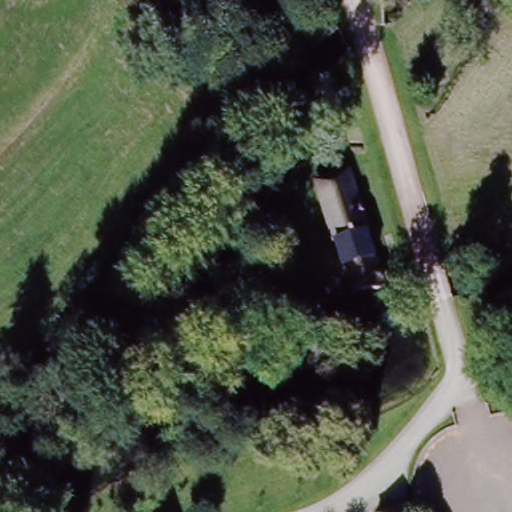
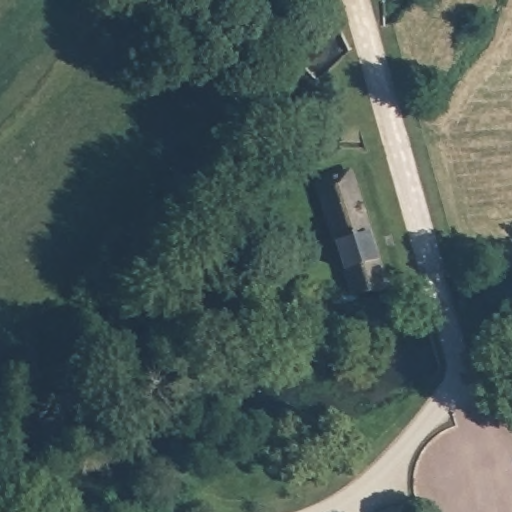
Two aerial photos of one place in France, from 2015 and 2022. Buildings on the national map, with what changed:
unchanged [(351,182),(386,286),(351,295),(321,194),(351,182)]

